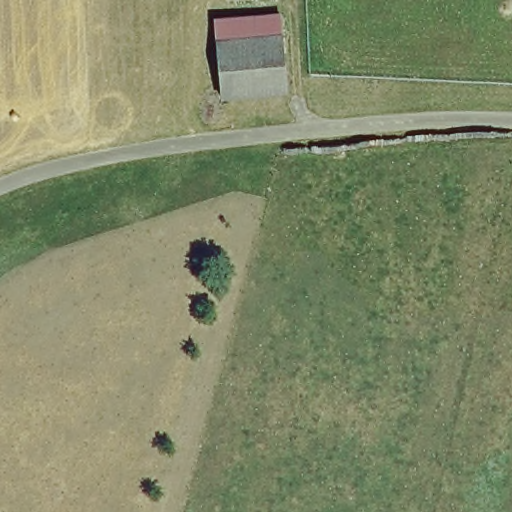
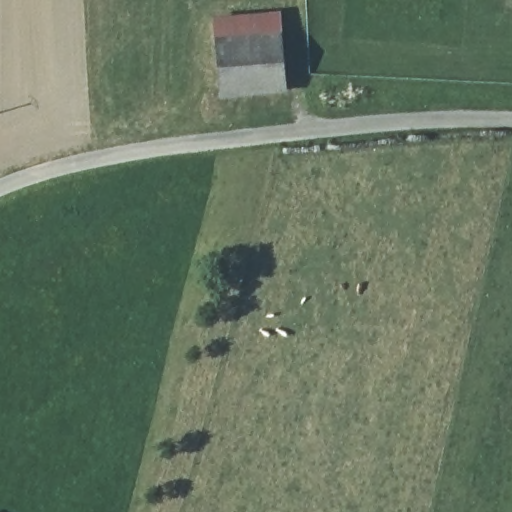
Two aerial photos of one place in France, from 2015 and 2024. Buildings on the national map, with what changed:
unchanged [(277,16),(283,98),(223,103),(217,18),(277,16)]

